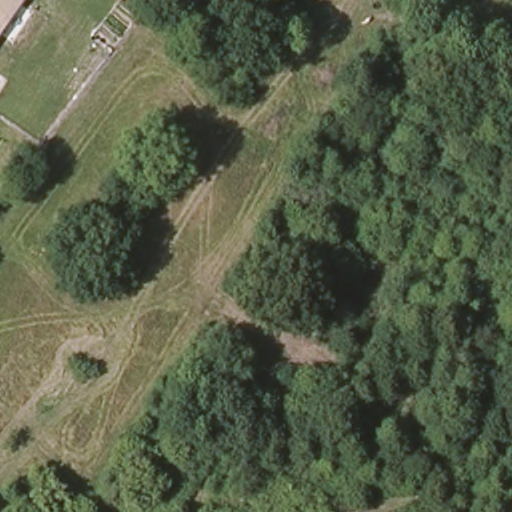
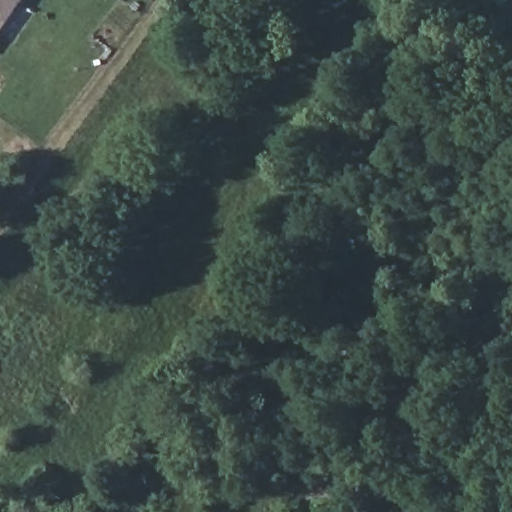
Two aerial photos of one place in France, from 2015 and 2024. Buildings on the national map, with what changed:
unchanged [(0,0),(22,0),(0,33),(0,0)]

